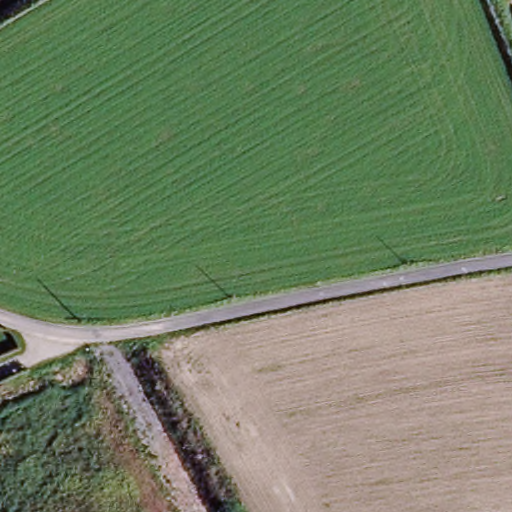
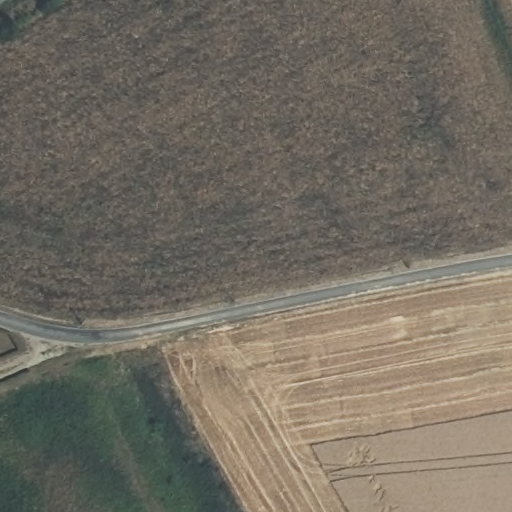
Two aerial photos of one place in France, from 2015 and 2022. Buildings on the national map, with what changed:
[]

